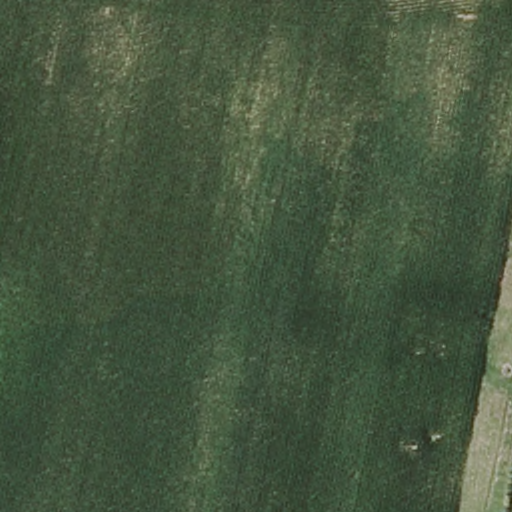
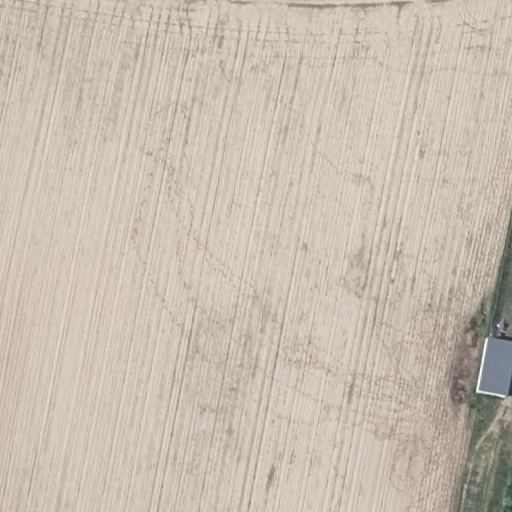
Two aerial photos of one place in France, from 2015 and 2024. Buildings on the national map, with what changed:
new [(512,366),(506,398),(476,392),(487,338),(512,343),(512,366)]

